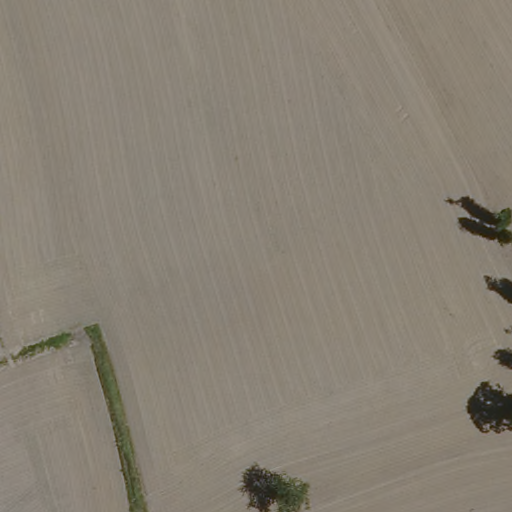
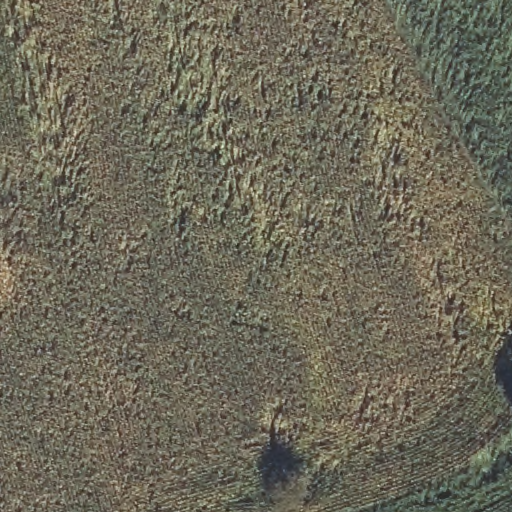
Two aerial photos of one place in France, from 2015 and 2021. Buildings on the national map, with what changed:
[]

